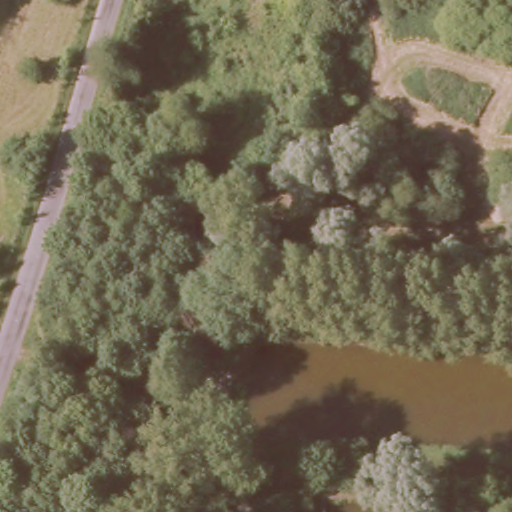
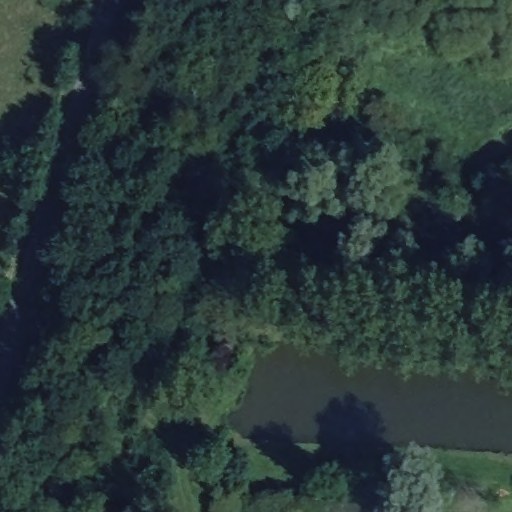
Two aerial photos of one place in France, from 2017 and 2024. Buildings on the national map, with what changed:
unchanged [(213,397),(196,391),(213,359),(227,365),(213,397)]

